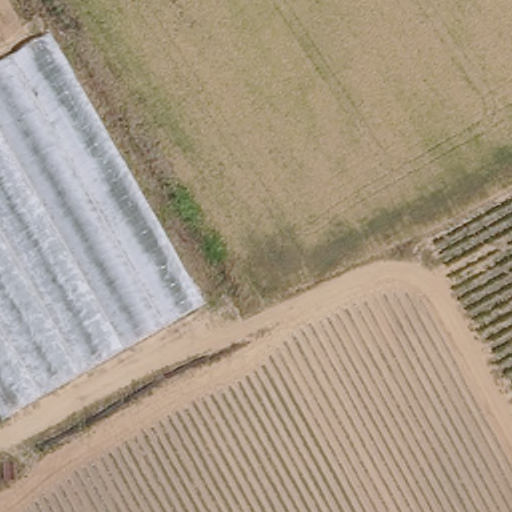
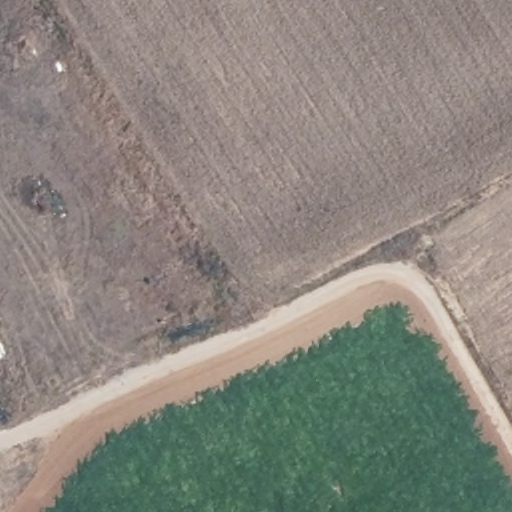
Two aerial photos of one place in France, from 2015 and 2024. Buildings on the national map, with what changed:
demolished [(51,35),(202,306),(0,421),(0,65),(51,35)]

